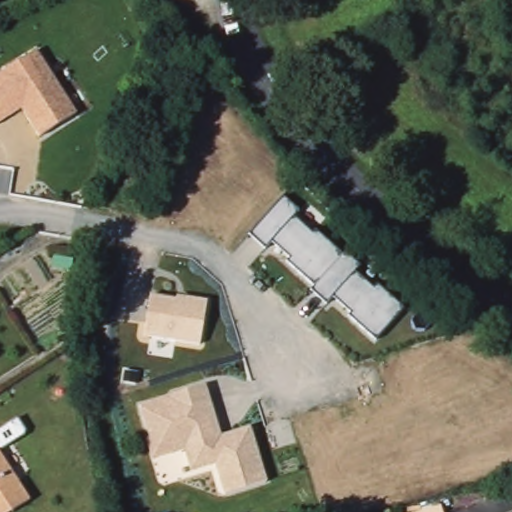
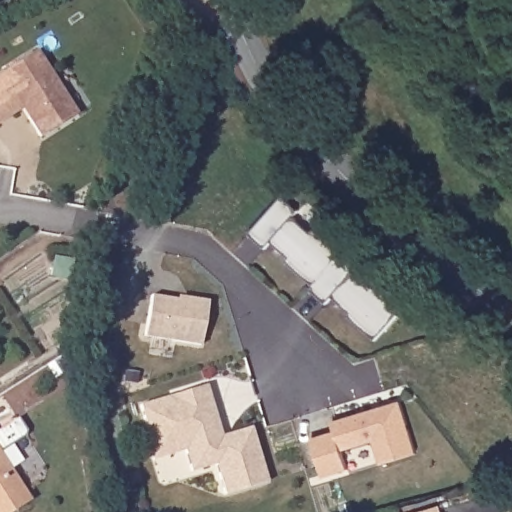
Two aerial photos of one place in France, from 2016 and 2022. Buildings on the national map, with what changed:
unchanged [(0,69),(36,46),(54,74),(77,109),(40,132),(28,113),(21,103),(0,117),(0,69)]
unchanged [(346,317),(350,313),(331,296),(325,303),(309,289),(313,284),(287,261),(291,257),(271,240),(264,248),(251,236),(284,197),(299,209),(293,216),(312,233),(314,230),(341,254),(344,252),(360,265),(355,271),(374,289),(377,285),(403,310),(374,342),(346,317)]
unchanged [(201,345),(142,336),(149,297),(176,300),(176,296),(207,301),(201,345)]
unchanged [(215,464),(191,472),(184,451),(150,460),(144,440),(148,440),(140,404),(208,386),(221,436),(252,427),(268,481),(224,494),(215,464)]
new [(335,432),(332,423),(401,402),(417,454),(381,465),(374,442),(342,451),(348,470),(323,478),(311,439),(335,432)]
unchanged [(11,512),(0,512),(0,453),(30,500),(11,512)]

